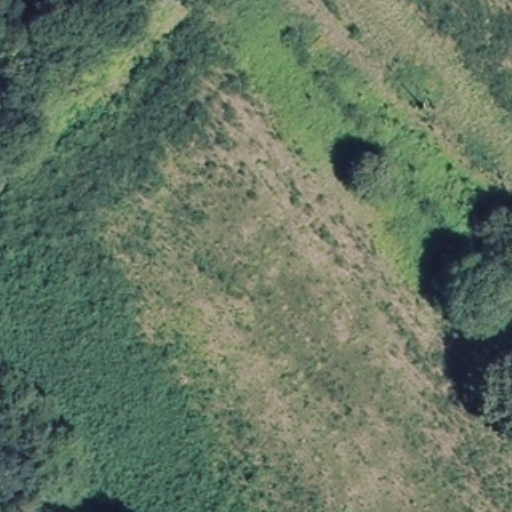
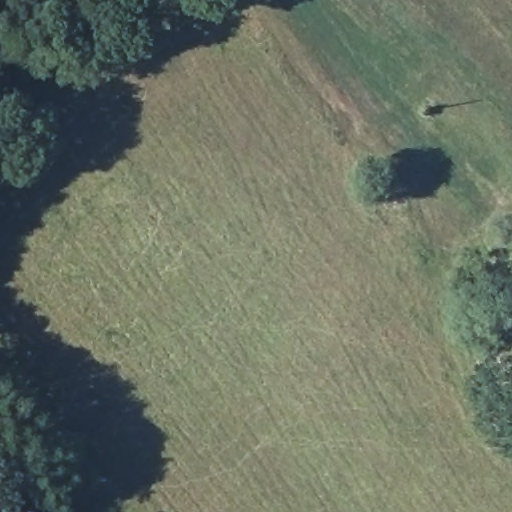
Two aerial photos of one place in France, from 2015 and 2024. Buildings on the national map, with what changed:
[]

